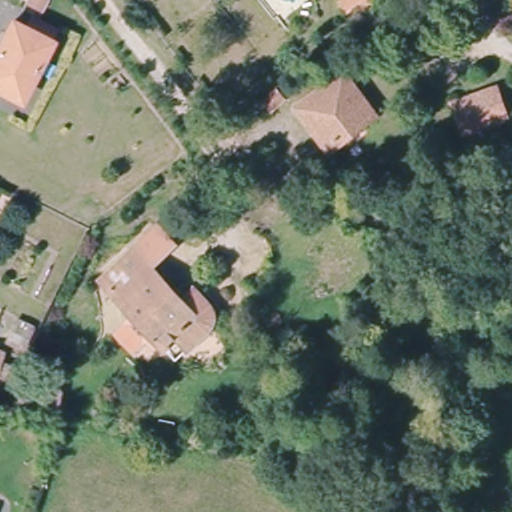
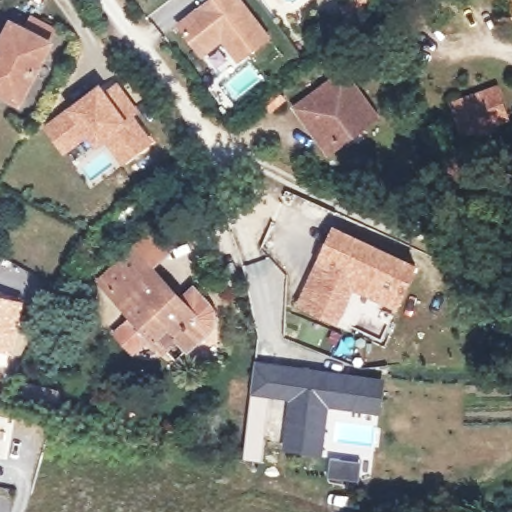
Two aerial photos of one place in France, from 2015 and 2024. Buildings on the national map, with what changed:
new [(240,62),(222,41),(202,57),(177,23),(206,0),(243,0),(270,37),(240,62)]
unchanged [(339,0),(375,0),(361,10),(356,4),(347,10),(339,0)]
unchanged [(0,90),(0,46),(14,21),(51,42),(20,101),(0,90)]
unchanged [(336,145),(305,101),(351,67),(382,109),(369,119),(350,134),(336,145)]
unchanged [(269,97),(282,85),(290,94),(276,106),(269,97)]
new [(100,87),(105,95),(117,86),(135,110),(130,113),(150,140),(125,159),(106,135),(97,142),(89,131),(65,150),(48,127),(100,87)]
unchanged [(455,102),(492,88),(502,117),(465,131),(455,102)]
unchanged [(123,327),(140,310),(108,274),(140,246),(165,224),(179,239),(155,261),(187,295),(203,312),(183,329),(169,341),(155,328),(139,343),(123,327)]
new [(335,227),(340,229),(418,262),(400,302),(355,283),(340,318),(303,302),(321,259),(335,227)]
unchanged [(200,283),(216,299),(219,306),(219,313),(217,320),(214,326),(195,342),(183,329),(203,312),(187,295),(200,283)]
new [(13,352),(0,350),(0,295),(24,301),(13,352)]
unchanged [(2,351),(0,359),(0,350),(2,351)]
new [(273,392),(254,390),(256,362),(276,365),(299,367),(384,376),(380,406),(328,400),(323,449),(290,446),(296,394),(273,392)]
unchanged [(21,377),(64,389),(57,413),(15,400),(21,377)]
new [(333,458),(343,460),(341,478),(331,477),(333,458)]

